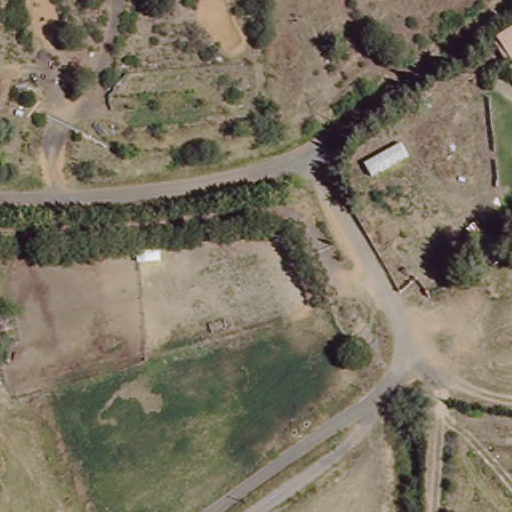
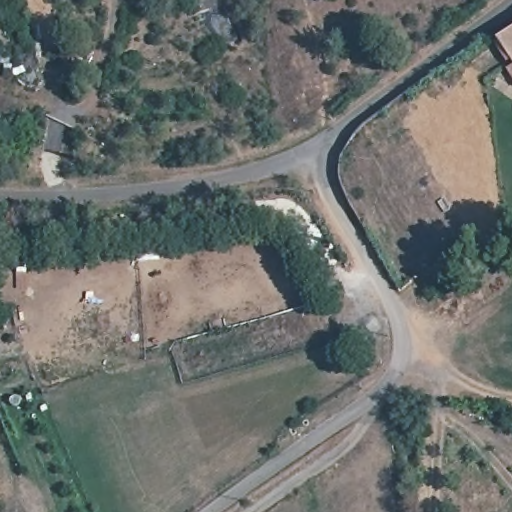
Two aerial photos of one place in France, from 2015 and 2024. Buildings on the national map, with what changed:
unchanged [(503,49),(497,46),(500,37),(512,38),(512,64),(503,49)]

